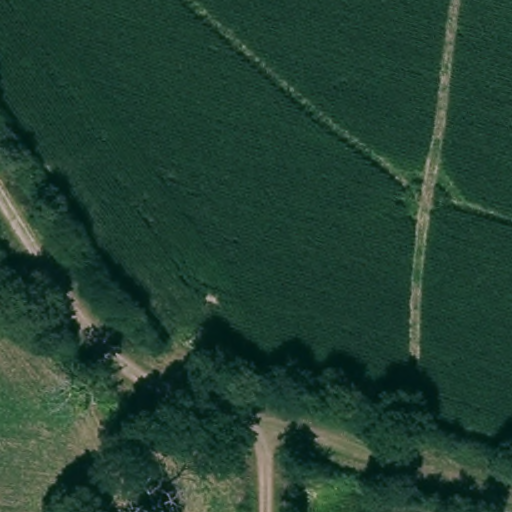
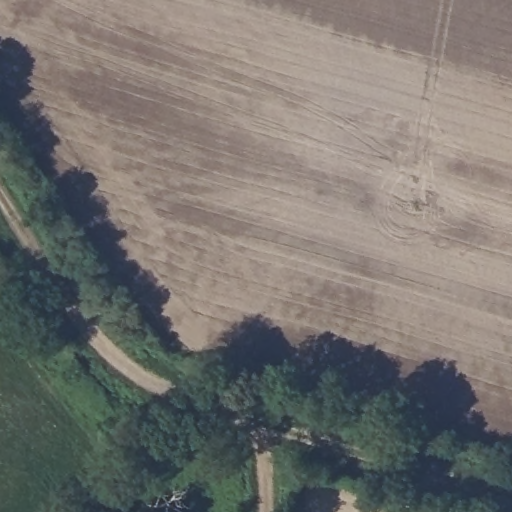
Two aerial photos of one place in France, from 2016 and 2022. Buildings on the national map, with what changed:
[]

